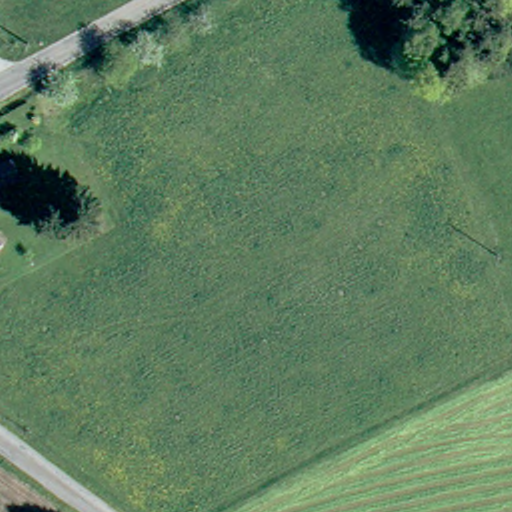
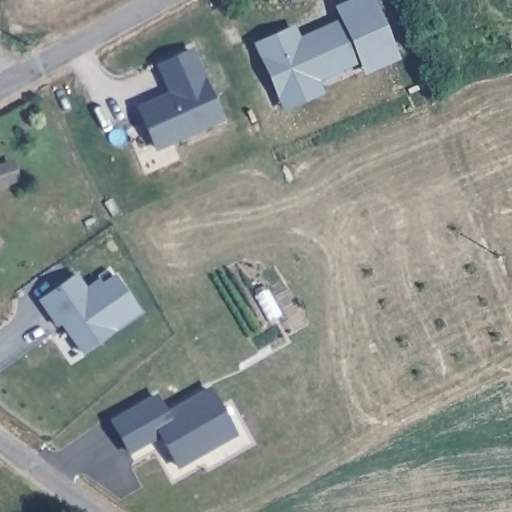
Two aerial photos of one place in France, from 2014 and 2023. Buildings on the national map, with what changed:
new [(340,19),(335,5),(346,0),(375,0),(399,58),(363,74),(360,63),(319,82),(325,95),(282,111),(253,43),(295,24),(299,36),(340,19)]
new [(155,64),(194,47),(225,120),(155,151),(135,105),(167,92),(155,64)]
unchanged [(0,254),(0,248),(3,251),(0,254)]
new [(85,288),(99,280),(102,284),(115,276),(139,312),(82,351),(61,323),(57,326),(38,298),(75,273),(85,288)]
new [(166,410),(210,386),(238,435),(176,468),(160,437),(128,455),(108,419),(155,392),(166,410)]

